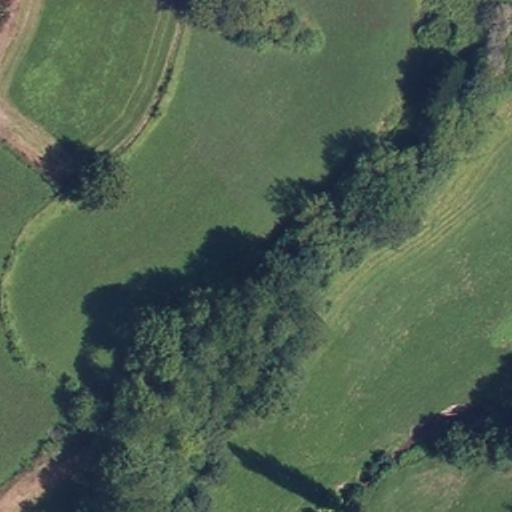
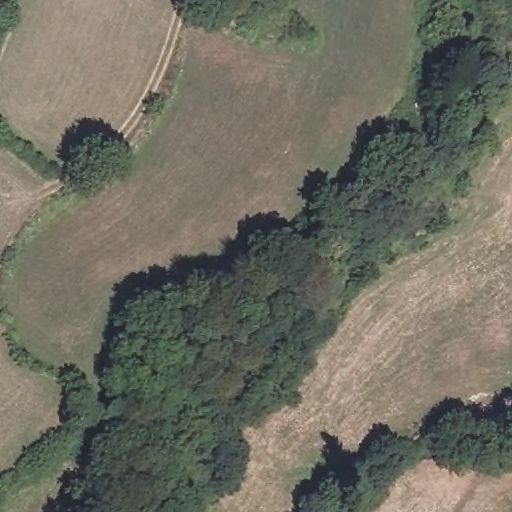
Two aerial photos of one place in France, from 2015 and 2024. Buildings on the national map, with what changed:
[]

